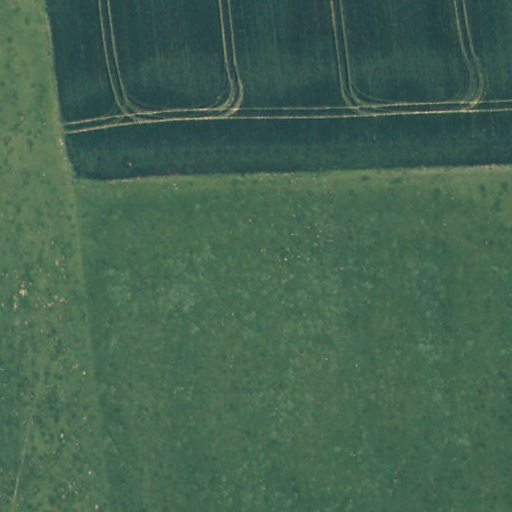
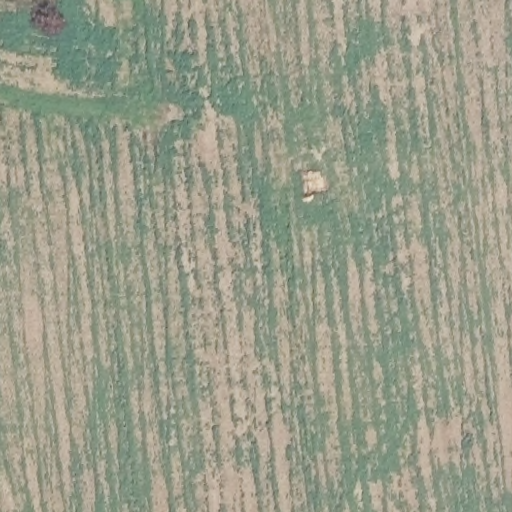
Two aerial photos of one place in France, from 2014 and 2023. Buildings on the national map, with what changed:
[]

